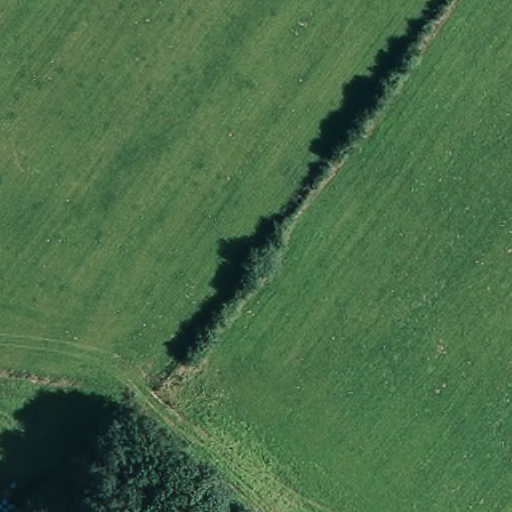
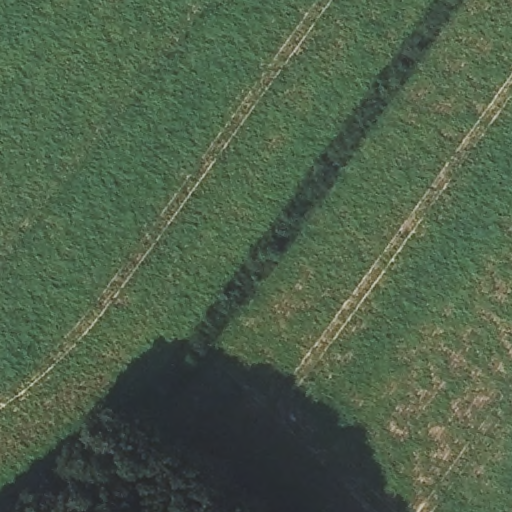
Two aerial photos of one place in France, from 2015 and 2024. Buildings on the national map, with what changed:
[]

